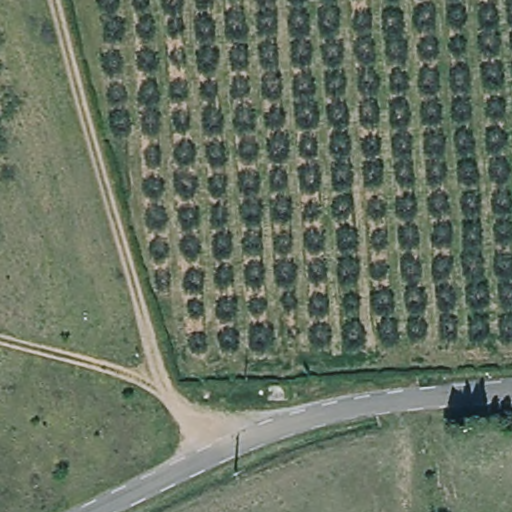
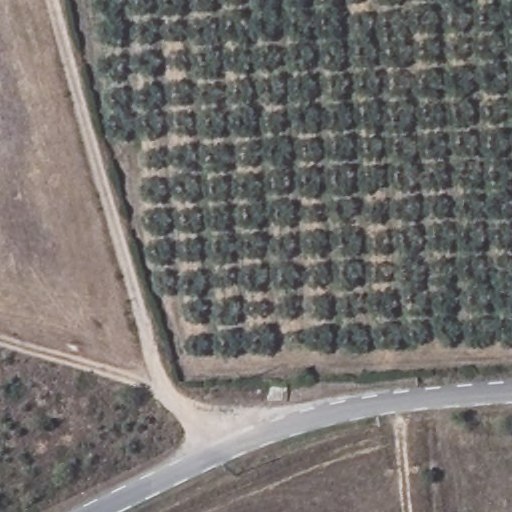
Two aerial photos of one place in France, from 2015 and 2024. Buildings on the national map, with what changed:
unchanged [(288,389),(287,405),(261,405),(266,390),(288,389)]

